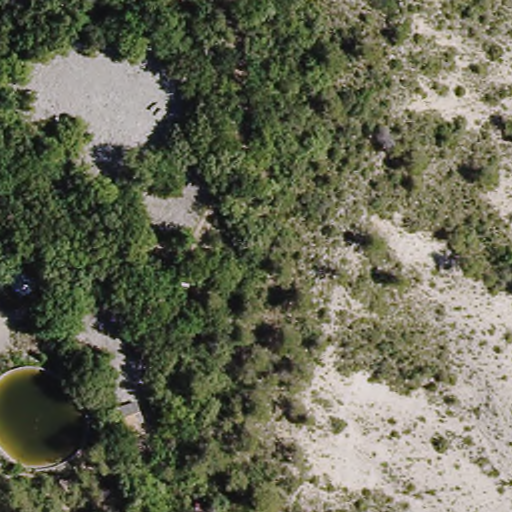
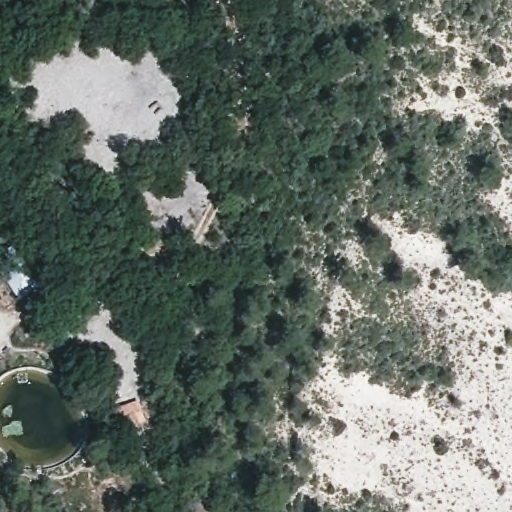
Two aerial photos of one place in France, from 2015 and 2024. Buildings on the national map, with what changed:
unchanged [(138,398),(144,425),(123,428),(115,408),(138,398)]

